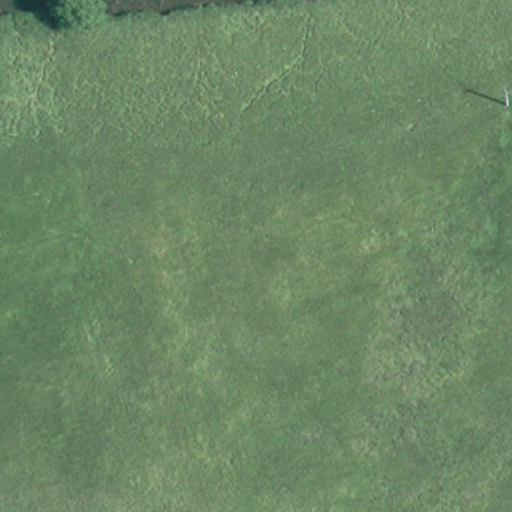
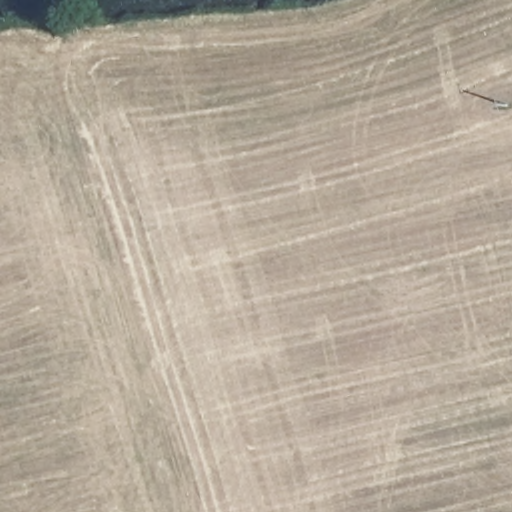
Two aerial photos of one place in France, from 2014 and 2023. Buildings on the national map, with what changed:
[]

